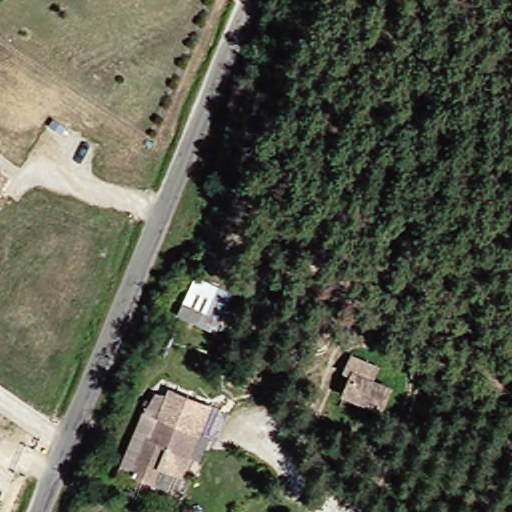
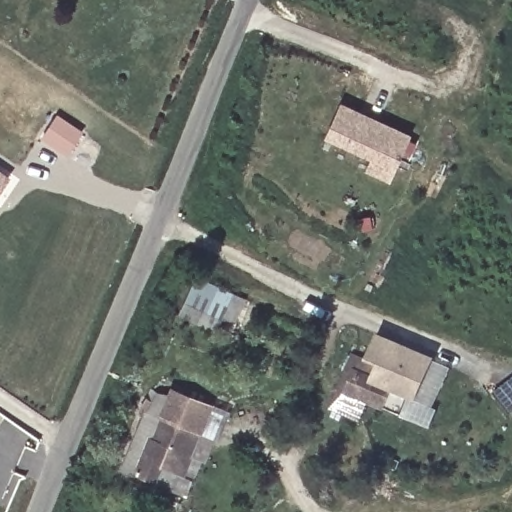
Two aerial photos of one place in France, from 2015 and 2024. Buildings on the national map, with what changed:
new [(358,113),(379,122),(409,135),(390,179),(368,170),(375,154),(346,141),(344,145),(327,137),(340,105),(358,113)]
unchanged [(0,187),(0,171),(6,175),(0,187)]
unchanged [(235,292),(217,334),(174,316),(195,272),(235,292)]
new [(390,394),(370,385),(375,372),(364,368),(378,337),(399,346),(450,370),(432,412),(436,414),(430,432),(381,414),(390,394)]
unchanged [(364,368),(375,372),(370,385),(390,394),(381,414),(343,398),(358,365),(364,368)]
unchanged [(167,381),(218,401),(202,434),(162,416),(169,396),(163,394),(167,381)]
unchanged [(163,394),(169,396),(162,416),(202,434),(208,436),(181,501),(113,470),(153,391),(163,394)]

